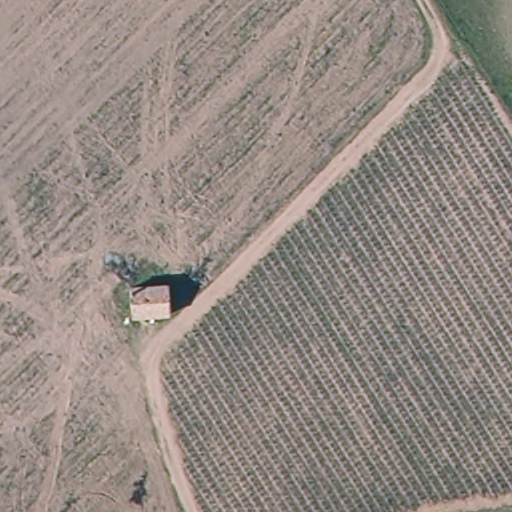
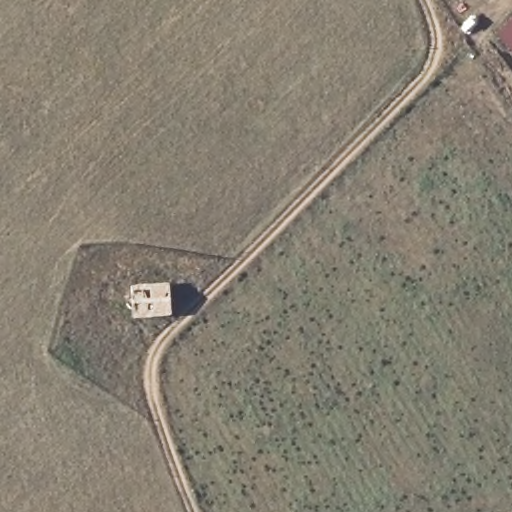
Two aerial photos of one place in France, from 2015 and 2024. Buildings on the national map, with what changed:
new [(499,33),(512,20),(512,46),(499,33)]
unchanged [(172,314),(133,315),(131,286),(171,285),(172,314)]

